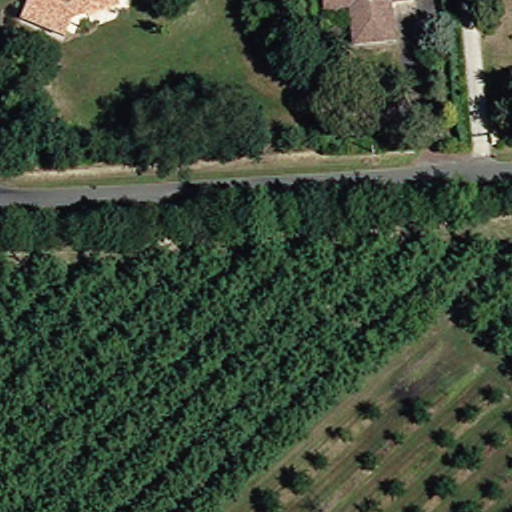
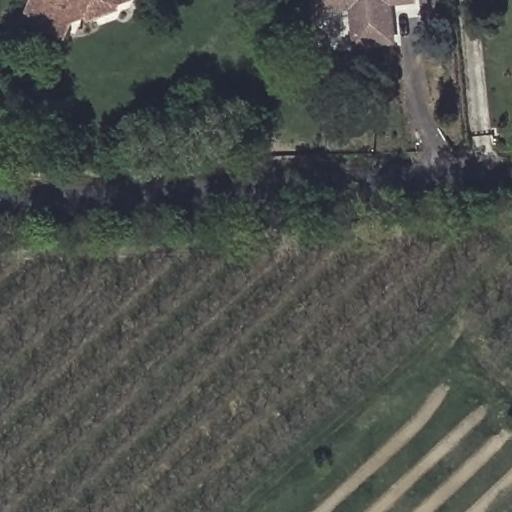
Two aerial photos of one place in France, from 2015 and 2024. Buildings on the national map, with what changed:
unchanged [(82,13),(74,36),(30,19),(38,0),(125,0),(126,5),(96,16),(93,9),(82,13)]
unchanged [(363,42),(360,5),(334,7),(334,0),(420,0),(397,2),(400,39),(363,42)]

